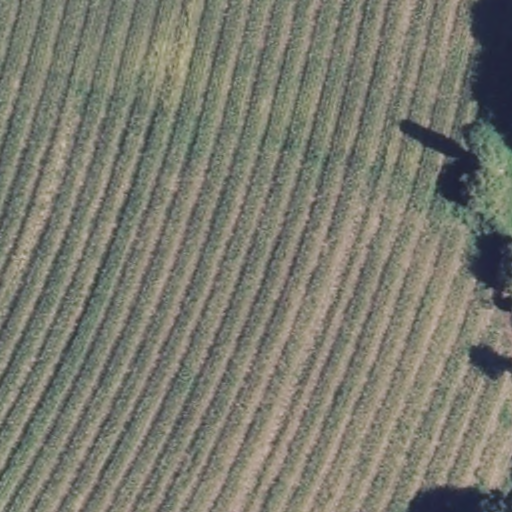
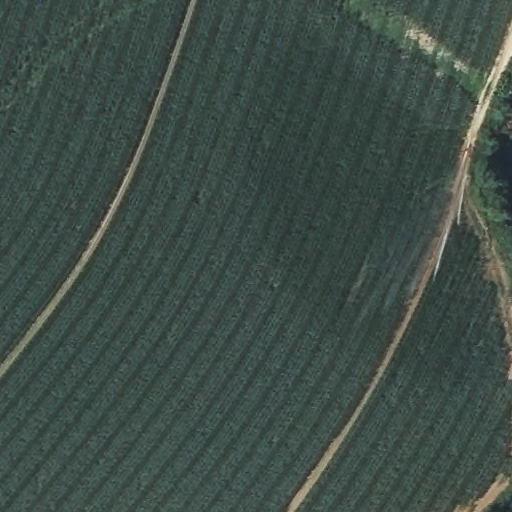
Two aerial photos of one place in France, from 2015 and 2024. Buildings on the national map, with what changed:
[]

